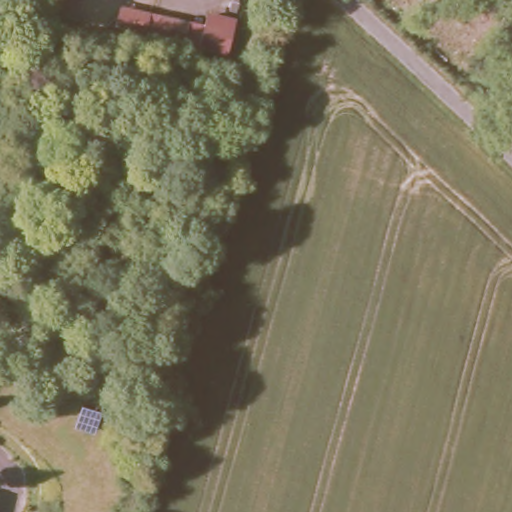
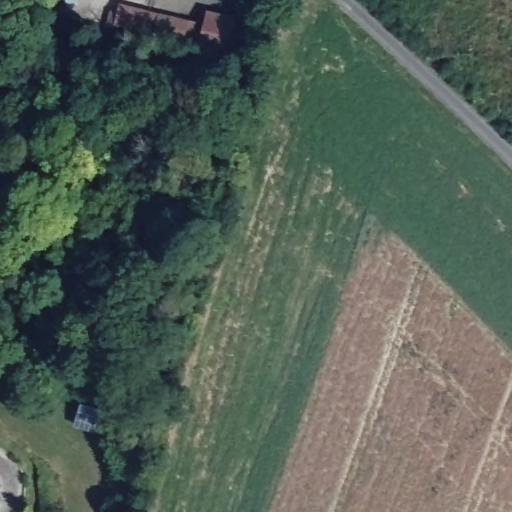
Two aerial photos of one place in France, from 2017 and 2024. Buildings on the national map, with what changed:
unchanged [(205,20),(207,10),(237,16),(228,59),(197,52),(199,42),(113,23),(120,2),(205,20)]

